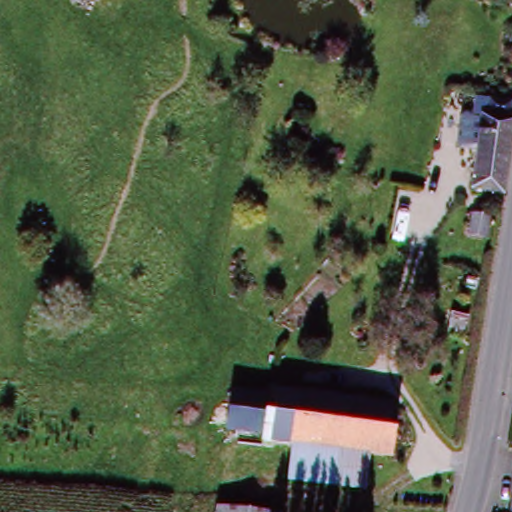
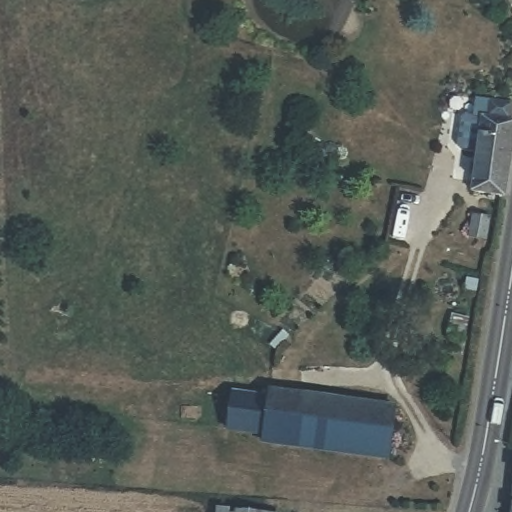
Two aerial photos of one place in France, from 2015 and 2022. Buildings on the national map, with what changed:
unchanged [(470,194),(475,138),(463,136),(466,105),(488,107),(506,109),(505,122),(512,122),(512,137),(506,196),(470,194)]
unchanged [(485,225),(483,243),(467,242),(467,224),(485,225)]
unchanged [(235,432),(237,398),(272,401),(273,391),(390,400),(388,456),(359,454),(286,448),(266,447),(235,445),(235,432)]
unchanged [(270,506),(270,512),(213,512),(215,501),(270,506)]

